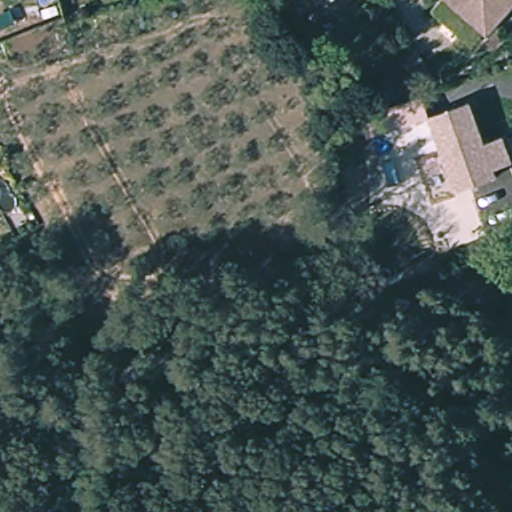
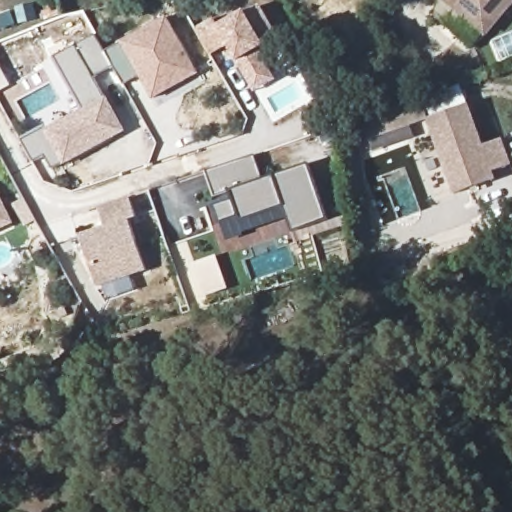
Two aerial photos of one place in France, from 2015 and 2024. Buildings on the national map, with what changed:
unchanged [(438,3),(440,0),(512,0),(512,3),(484,38),(438,3)]
new [(213,18),(217,27),(245,10),(261,3),(273,24),(261,37),(267,48),(257,53),(269,65),(276,79),(254,93),(237,64),(224,42),(210,56),(195,30),(213,18)]
new [(120,43),(120,41),(168,16),(200,74),(153,101),(139,76),(123,86),(112,68),(105,53),(106,52),(120,43)]
new [(46,124),(48,129),(81,111),(53,59),(95,34),(106,52),(105,53),(112,68),(94,77),(105,98),(107,97),(127,132),(65,166),(63,164),(53,170),(46,156),(34,163),(21,140),(46,124)]
unchanged [(465,106),(479,146),(495,140),(503,166),(488,171),(490,179),(448,194),(423,120),(465,106)]
new [(324,219),(286,228),(278,203),(222,223),(204,173),(253,156),(262,179),(308,165),(324,219)]
new [(105,227),(98,209),(129,198),(137,218),(132,220),(148,270),(130,278),(134,289),(108,299),(103,286),(97,288),(79,236),(105,227)]
new [(9,222),(0,226),(0,200),(9,222)]

